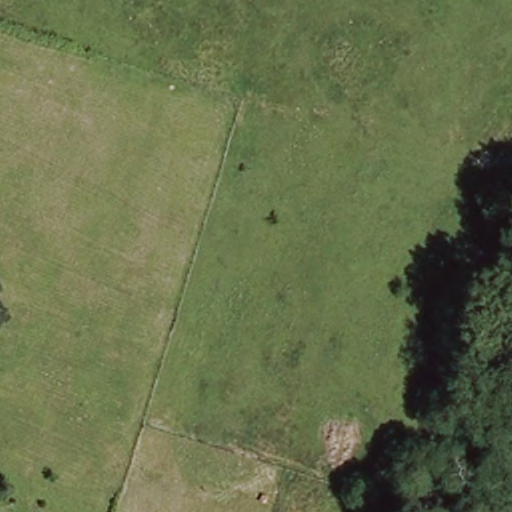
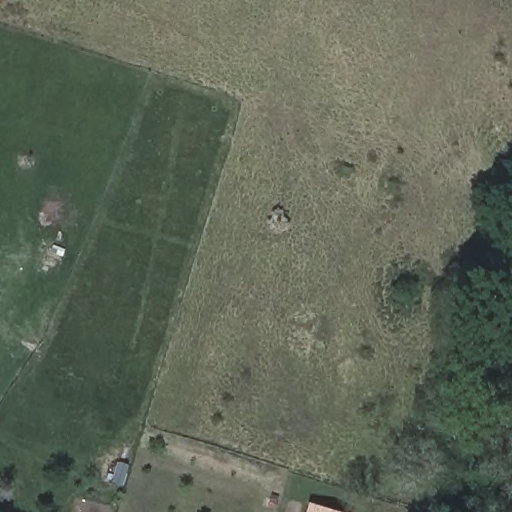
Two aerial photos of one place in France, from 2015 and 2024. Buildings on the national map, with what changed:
new [(308,502),(342,512),(305,512),(308,502)]

